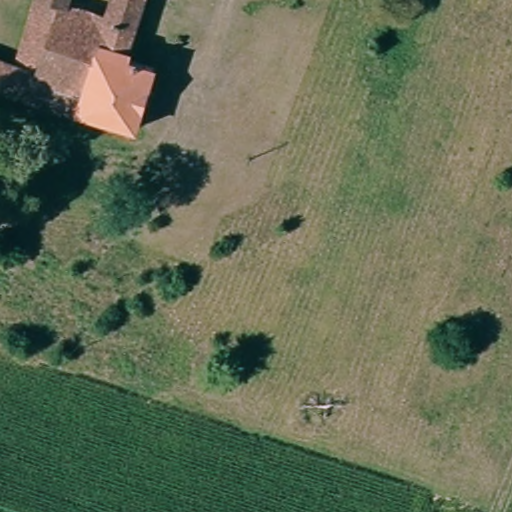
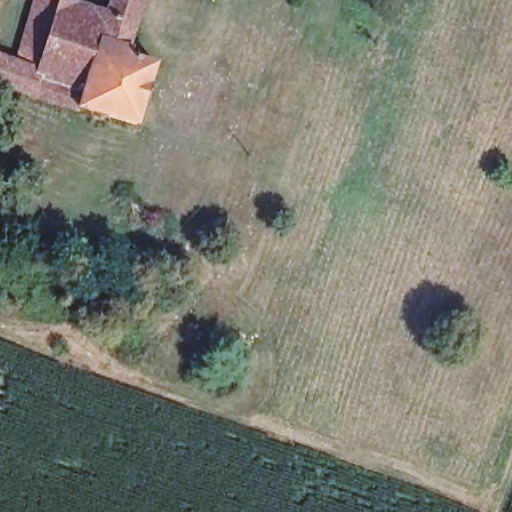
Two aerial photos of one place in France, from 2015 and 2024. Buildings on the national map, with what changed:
unchanged [(16,57),(48,66),(67,0),(136,0),(124,51),(165,62),(150,129),(0,80),(0,61),(3,53),(16,57)]
unchanged [(16,57),(32,0),(67,0),(48,66),(16,57)]
unchanged [(0,52),(3,53),(0,61),(0,52)]

